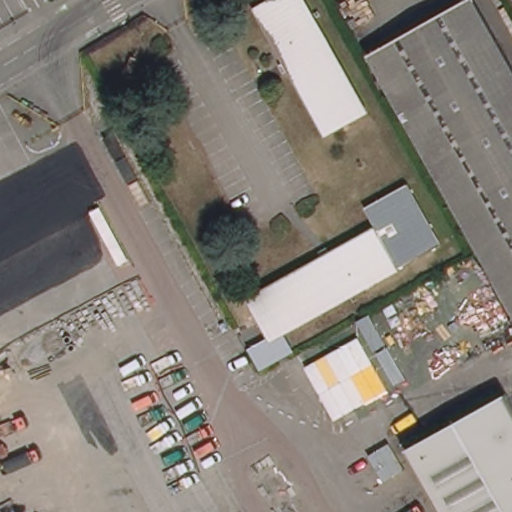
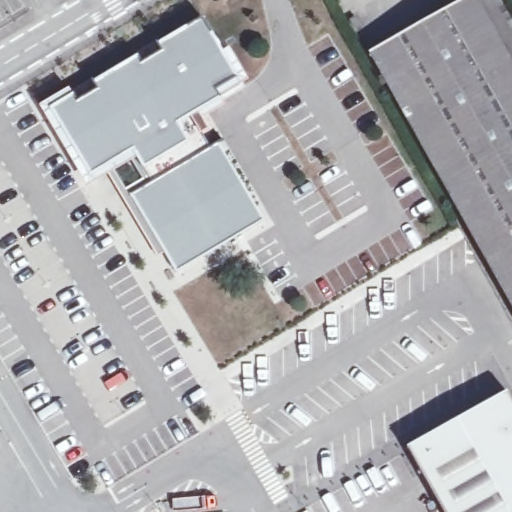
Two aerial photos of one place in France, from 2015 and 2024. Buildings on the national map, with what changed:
demolished [(268,0),(305,0),(368,113),(327,136),(255,7),(268,0)]
unchanged [(470,0),(474,0),(512,67),(512,303),(373,55),(470,0)]
new [(201,19),(238,77),(216,92),(221,101),(200,112),(264,221),(178,273),(111,166),(91,178),(51,108),(201,19)]
demolished [(248,297),(376,225),(366,206),(409,183),(443,244),(400,267),(271,340),(248,297)]
unchanged [(409,449),(508,393),(512,401),(512,512),(444,512),(409,449)]
demolished [(263,499),(296,478),(316,512),(270,512),(263,499)]

